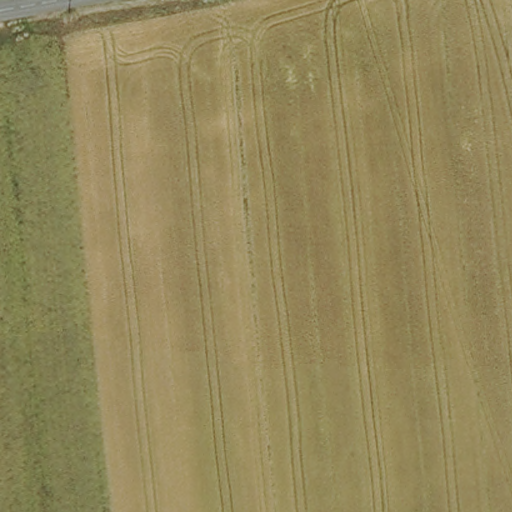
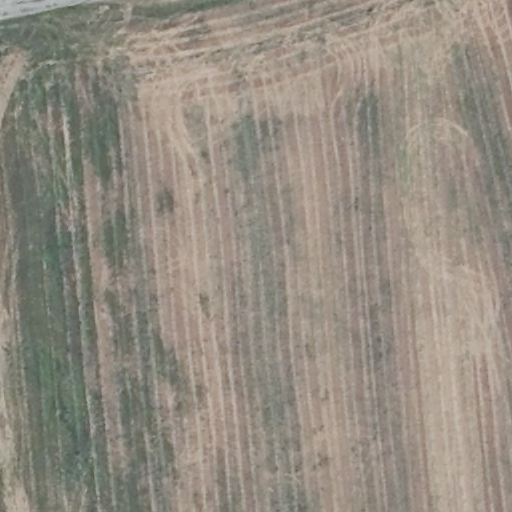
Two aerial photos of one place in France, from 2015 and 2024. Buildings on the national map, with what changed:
[]

